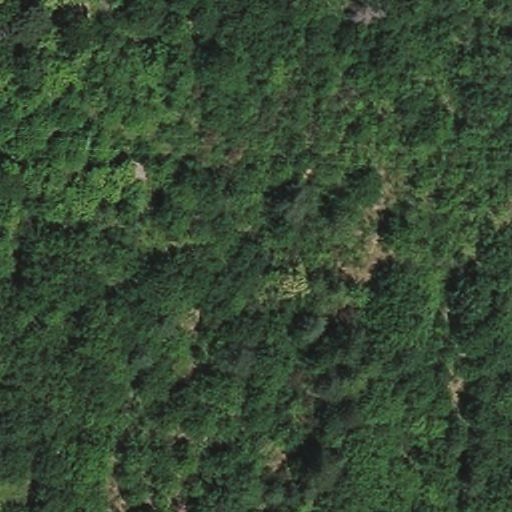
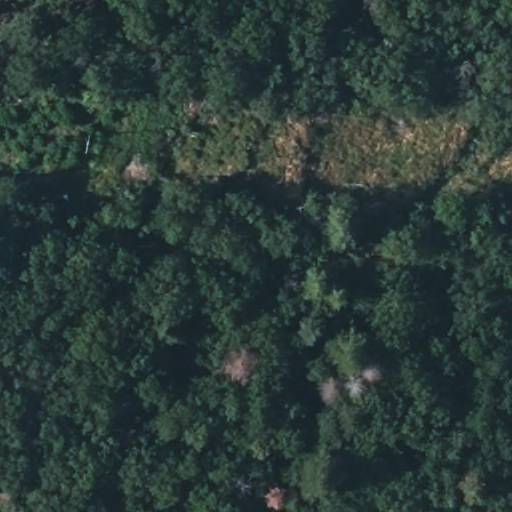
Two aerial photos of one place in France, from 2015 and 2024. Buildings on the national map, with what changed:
unchanged [(155,165),(147,187),(123,176),(130,155),(155,165)]

